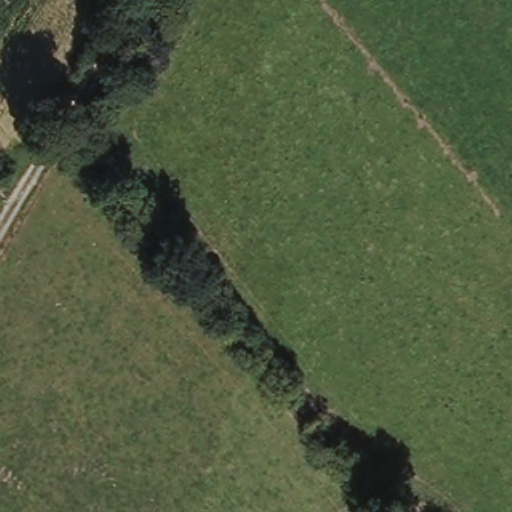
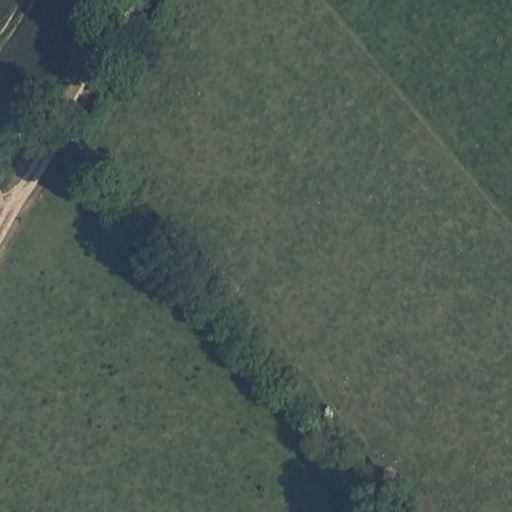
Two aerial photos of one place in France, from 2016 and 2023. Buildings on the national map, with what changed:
[]

